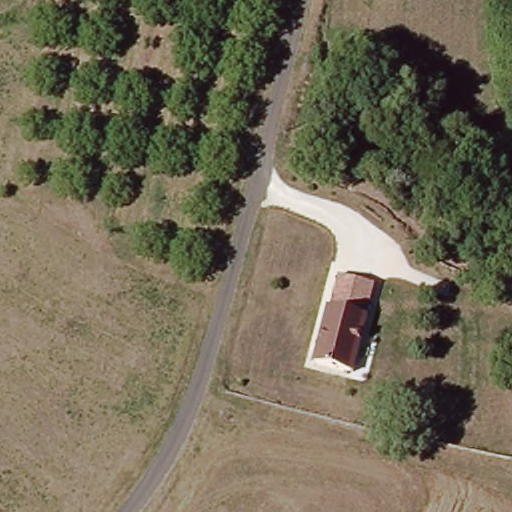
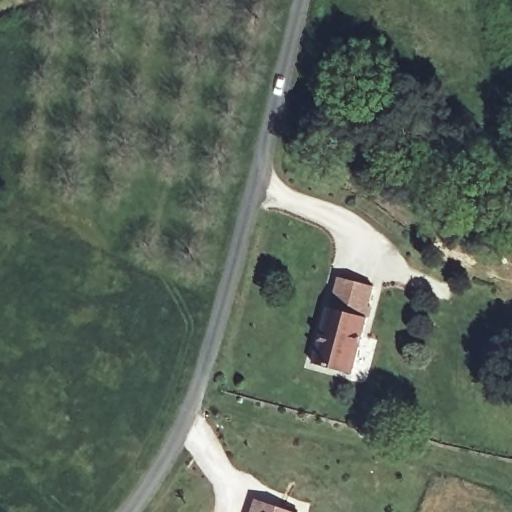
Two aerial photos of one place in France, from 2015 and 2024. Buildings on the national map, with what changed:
unchanged [(335,305),(341,276),(372,285),(365,312),(370,313),(356,372),(313,364),(328,303),(335,305)]
new [(255,500),(289,512),(250,512),(255,500)]

